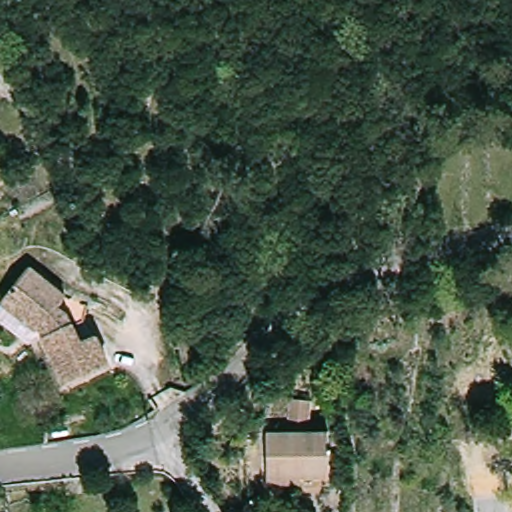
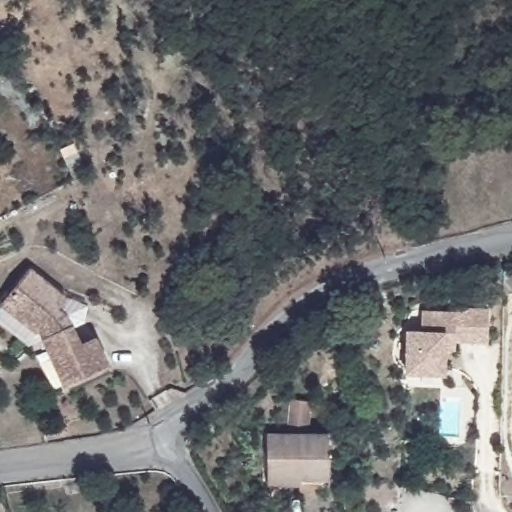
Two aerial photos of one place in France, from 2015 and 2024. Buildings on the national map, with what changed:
unchanged [(75,288),(96,297),(93,312),(81,317),(89,334),(105,328),(117,356),(73,376),(52,329),(35,336),(0,307),(40,260),(75,288)]
new [(442,348),(442,374),(397,373),(397,331),(411,331),(412,312),(452,313),(452,309),(486,309),(485,342),(452,341),(452,349),(442,348)]
demolished [(488,405),(452,402),(454,376),(490,379),(488,405)]
unchanged [(272,481),(270,429),(291,429),(295,394),(315,396),(311,428),(333,427),(335,479),(272,481)]
demolished [(510,512),(512,498),(512,512),(510,512)]

